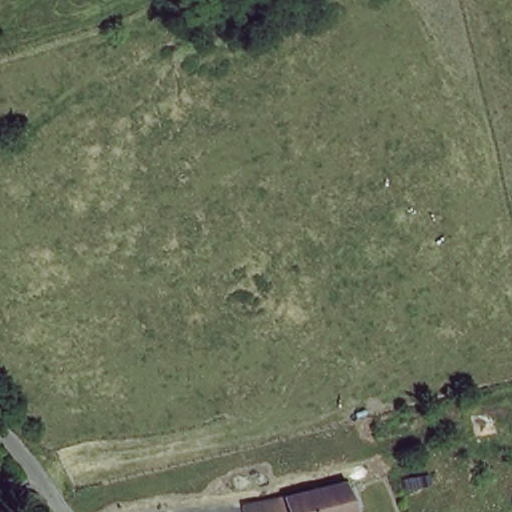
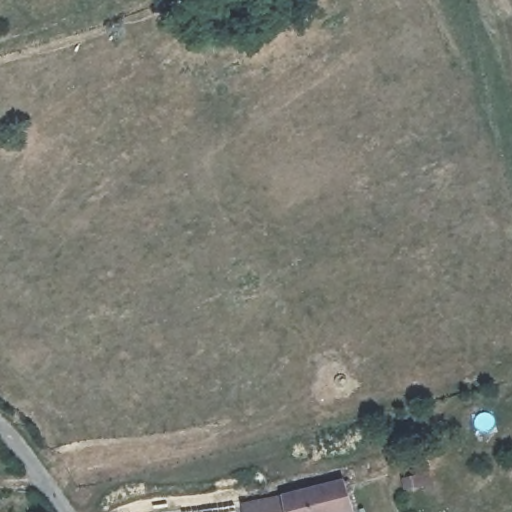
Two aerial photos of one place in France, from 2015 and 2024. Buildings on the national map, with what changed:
unchanged [(351,508),(340,512),(254,512),(340,483),(351,508)]

